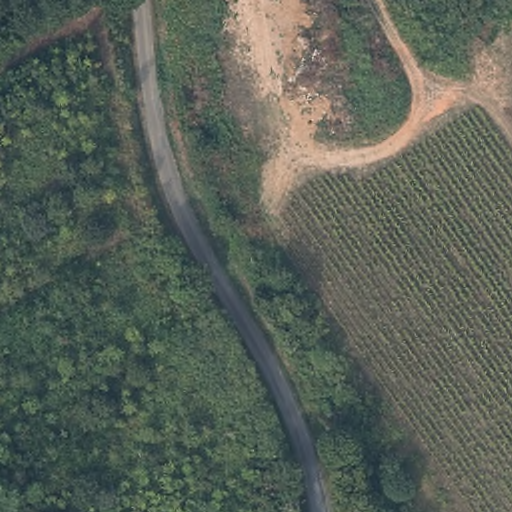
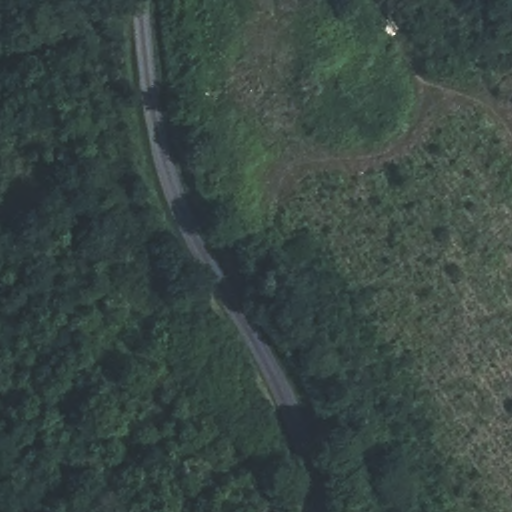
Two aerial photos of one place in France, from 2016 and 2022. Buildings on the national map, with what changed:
[]

